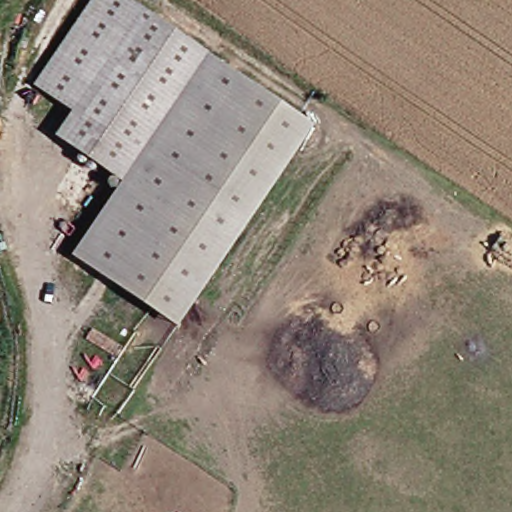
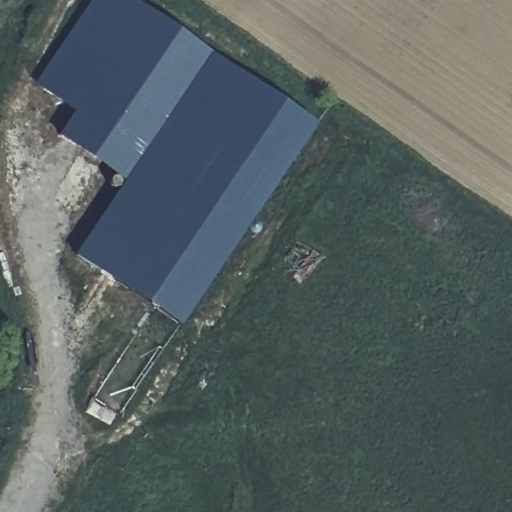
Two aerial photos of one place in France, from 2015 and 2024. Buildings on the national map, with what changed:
unchanged [(81,257),(132,183),(63,139),(81,112),(40,84),(98,0),(132,0),(319,127),(185,326),(81,257)]

